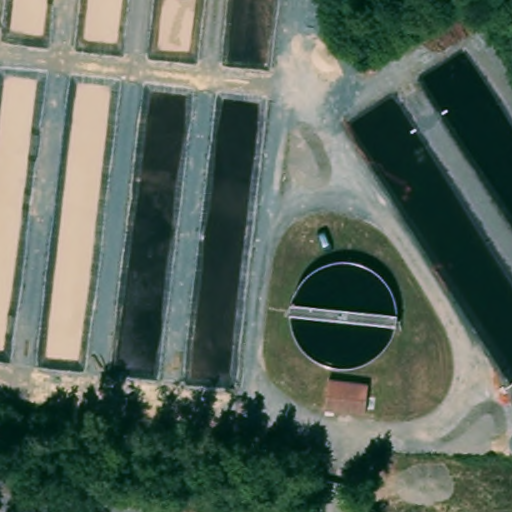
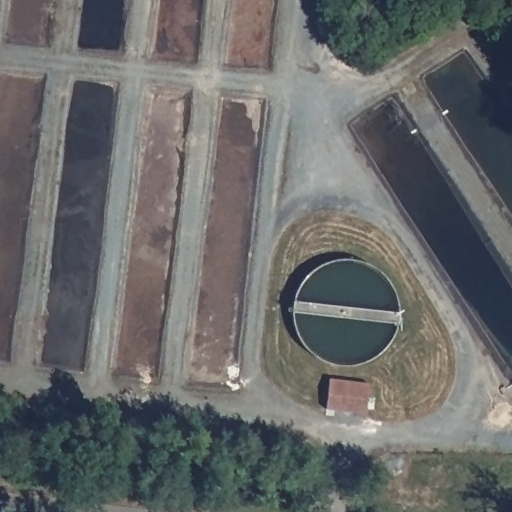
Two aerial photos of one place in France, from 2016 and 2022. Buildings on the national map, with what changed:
unchanged [(374,382),(370,412),(327,406),(331,377),(374,382)]

